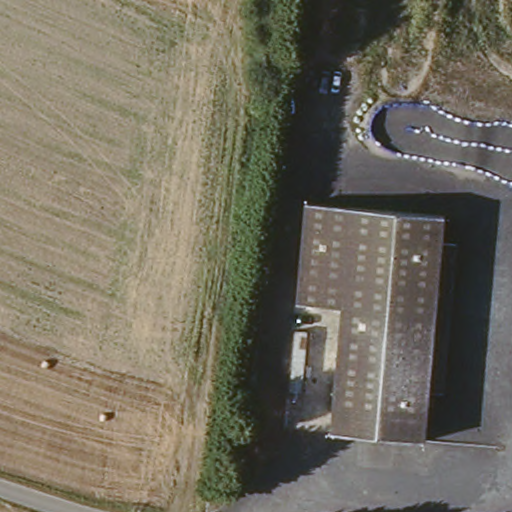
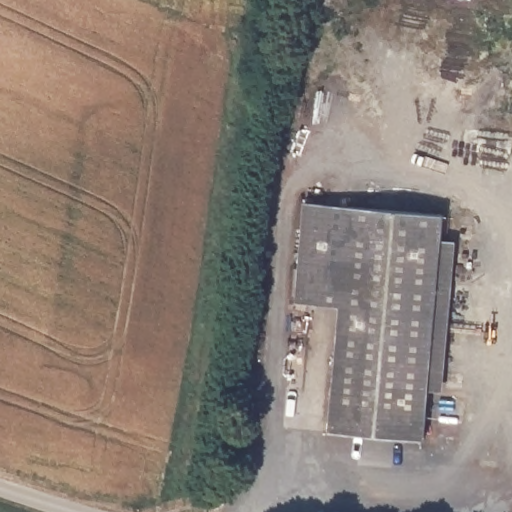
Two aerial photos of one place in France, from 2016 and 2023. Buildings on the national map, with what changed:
unchanged [(441,221),(421,445),(326,436),(335,312),(295,307),(303,207),(441,221)]

